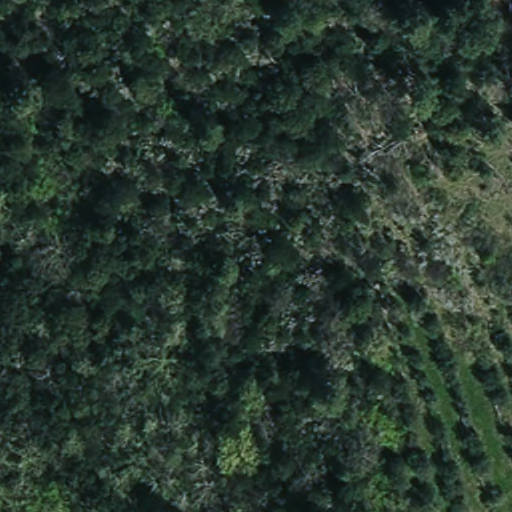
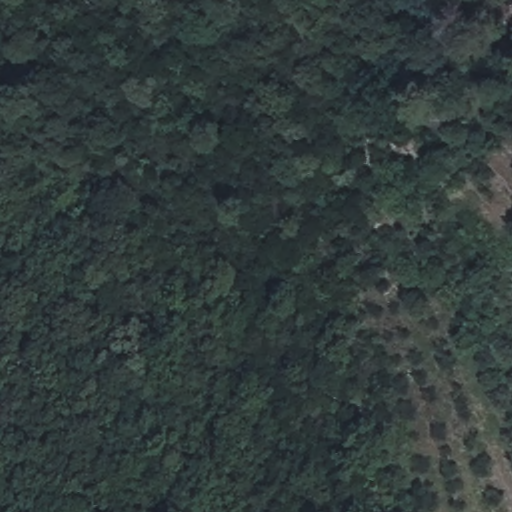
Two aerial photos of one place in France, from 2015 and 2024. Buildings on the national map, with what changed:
unchanged [(42,201),(60,195),(67,218),(48,223),(42,201)]

